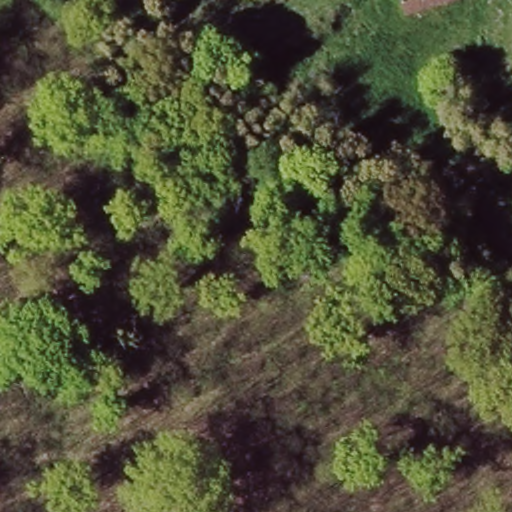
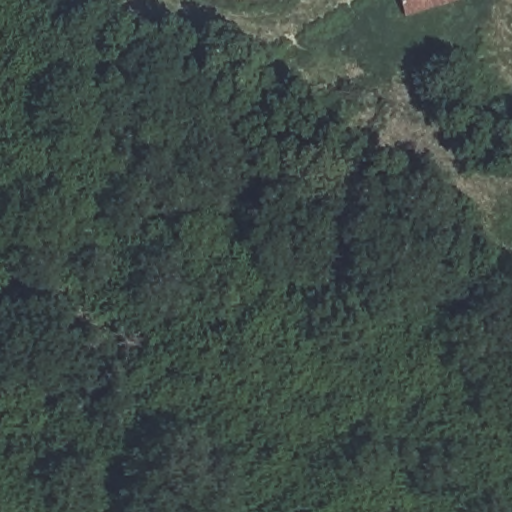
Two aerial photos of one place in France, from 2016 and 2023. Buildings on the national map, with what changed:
unchanged [(459,0),(461,7),(408,22),(396,0),(459,0)]

